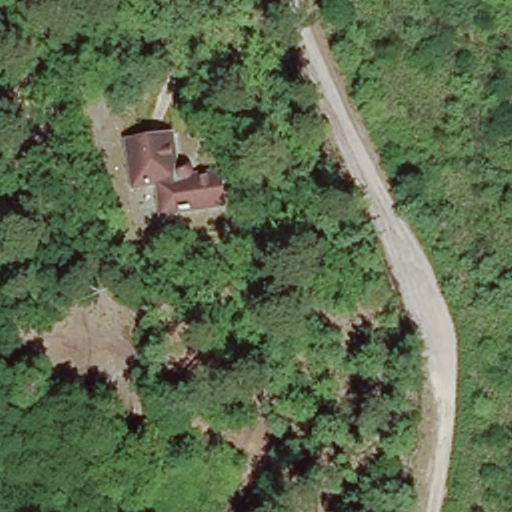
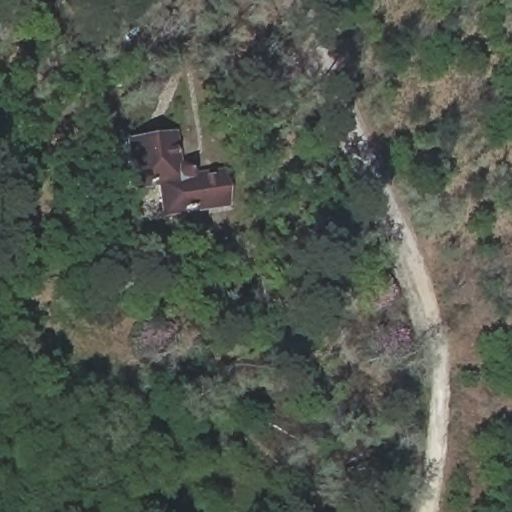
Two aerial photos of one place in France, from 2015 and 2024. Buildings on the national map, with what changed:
unchanged [(222,205),(165,212),(161,182),(133,185),(127,138),(175,132),(179,163),(191,161),(193,177),(218,174),(222,205)]

